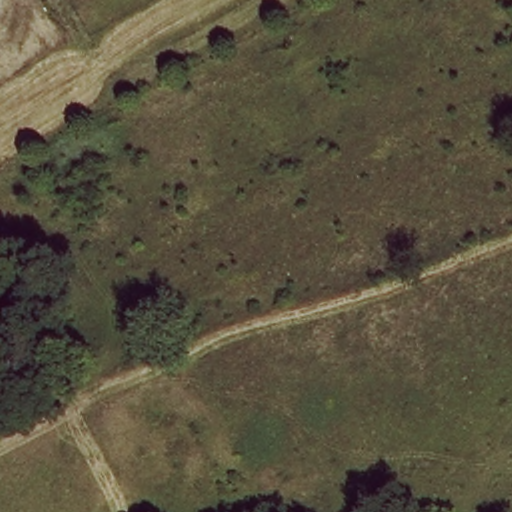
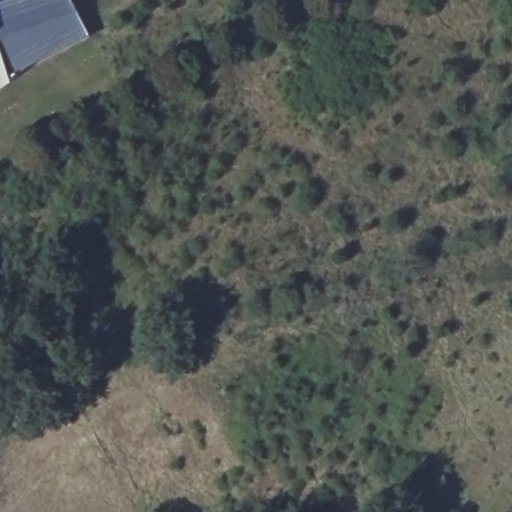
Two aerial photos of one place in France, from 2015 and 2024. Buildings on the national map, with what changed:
new [(5,0),(68,0),(87,37),(23,68),(8,79),(0,56),(0,2),(5,0)]

